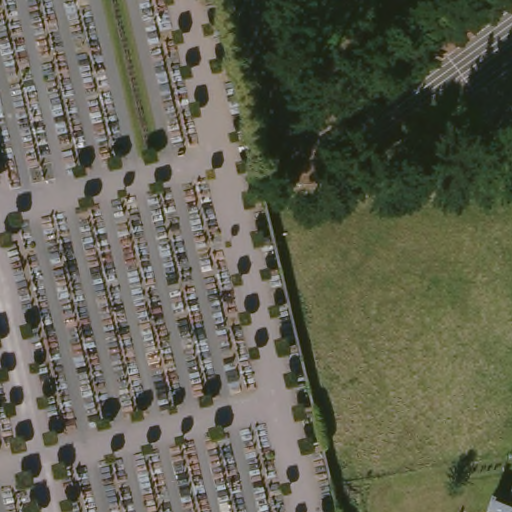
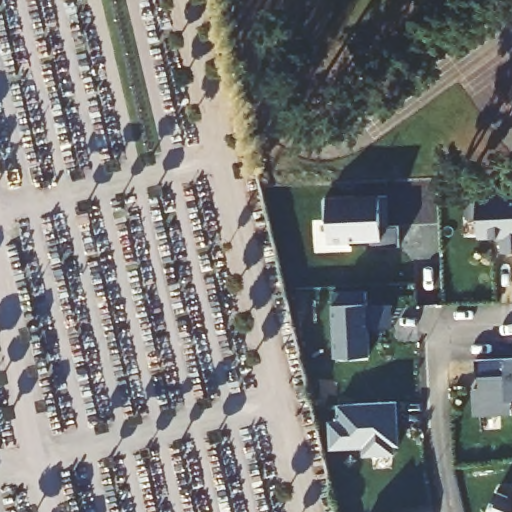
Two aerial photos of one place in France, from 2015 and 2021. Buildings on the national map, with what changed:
new [(384,197),(385,227),(395,227),(396,247),(367,249),(367,245),(349,245),(348,242),(325,242),(325,221),(322,221),(321,199),(384,197)]
new [(478,217),(468,217),(468,199),(512,197),(512,253),(502,253),(502,238),(479,237),(478,217)]
new [(365,292),(366,307),(391,306),(392,328),(367,330),(368,353),(381,353),(383,377),(369,377),(368,356),(334,357),(331,293),(365,292)]
new [(512,400),(510,401),(511,415),(475,416),(474,390),(482,390),(481,377),(477,377),(476,361),(512,360),(512,400)]
new [(338,422),(337,405),(395,402),(396,421),(392,420),(393,428),(396,428),(397,447),(393,447),(393,457),(363,458),(362,448),(329,450),(329,422),(338,422)]
unchanged [(494,487),(505,492),(512,477),(512,512),(496,512),(485,508),(494,487)]

